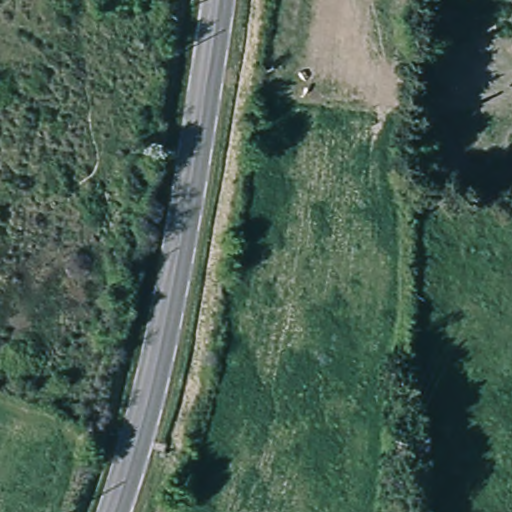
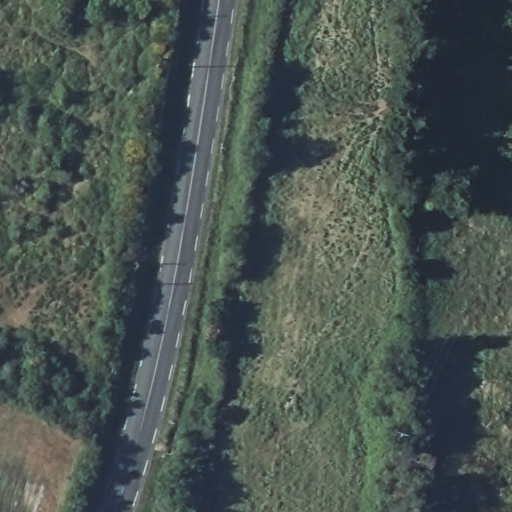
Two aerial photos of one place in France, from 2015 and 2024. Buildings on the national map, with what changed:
unchanged [(484,19),(463,17),(464,0),(485,0),(484,19)]
unchanged [(431,334),(431,351),(415,350),(415,333),(431,334)]

